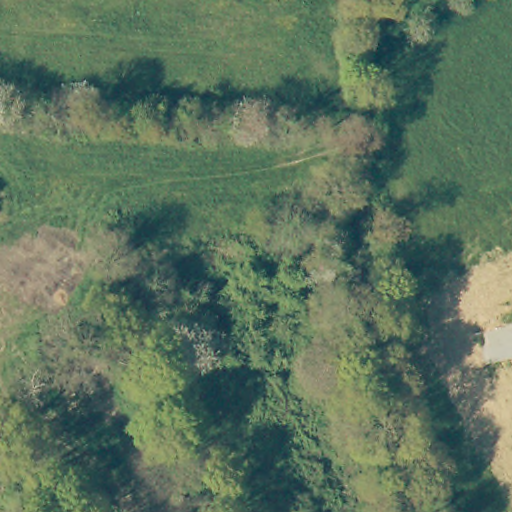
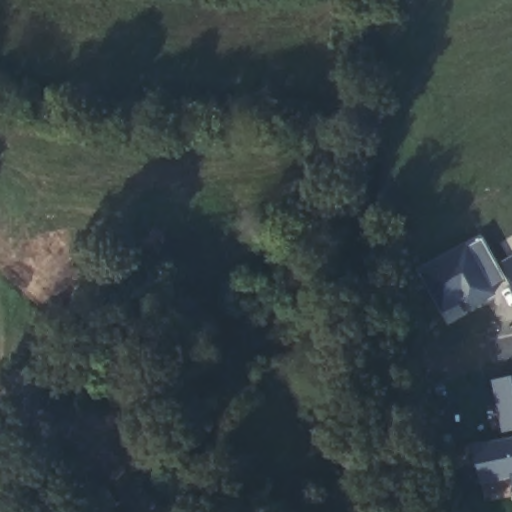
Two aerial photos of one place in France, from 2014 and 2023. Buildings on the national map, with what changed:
new [(493,286),(497,295),(466,310),(461,301),(442,311),(421,270),(481,235),(506,280),(493,286)]
new [(512,258),(512,278),(503,262),(512,258)]
new [(490,377),(512,373),(512,430),(500,431),(490,377)]
new [(480,483),(472,445),(512,437),(512,480),(511,477),(480,483)]

